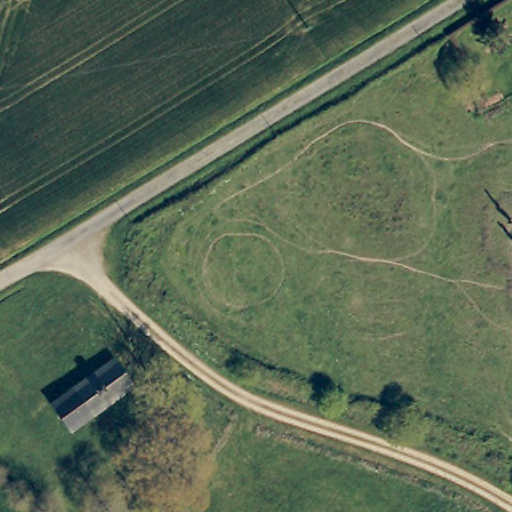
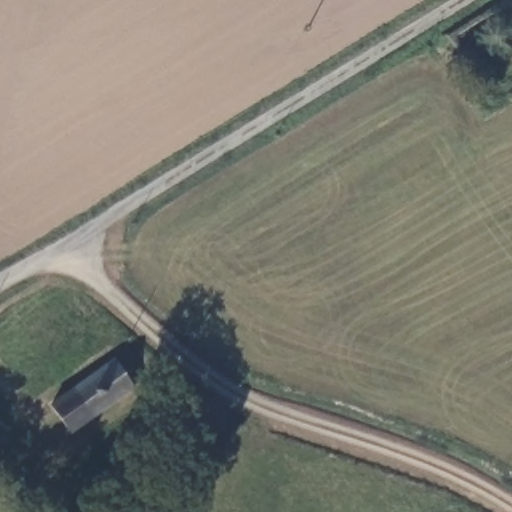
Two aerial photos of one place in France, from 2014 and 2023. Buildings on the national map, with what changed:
unchanged [(50,405),(114,360),(136,390),(72,434),(50,405)]

